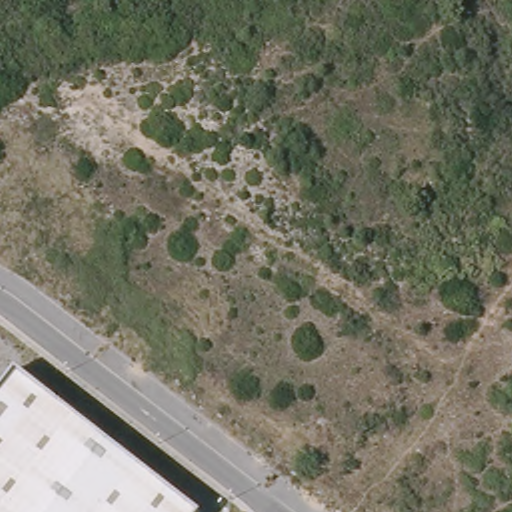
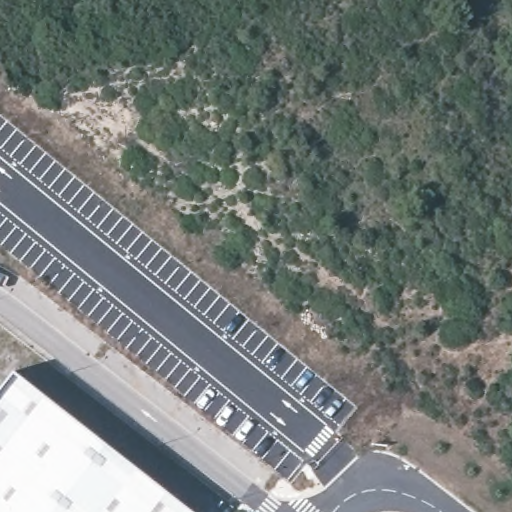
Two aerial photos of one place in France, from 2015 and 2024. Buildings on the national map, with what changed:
unchanged [(195,512),(0,512),(0,387),(12,371),(195,512)]

